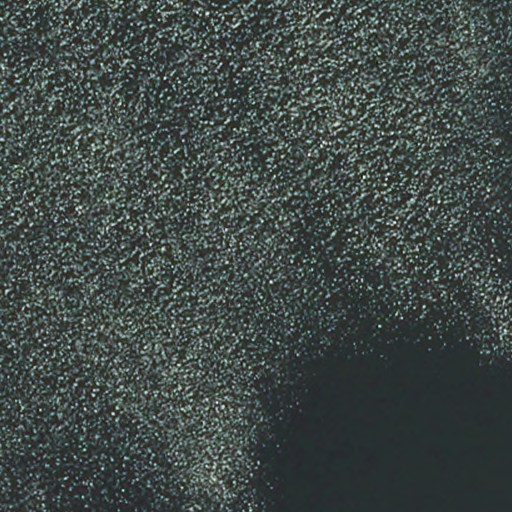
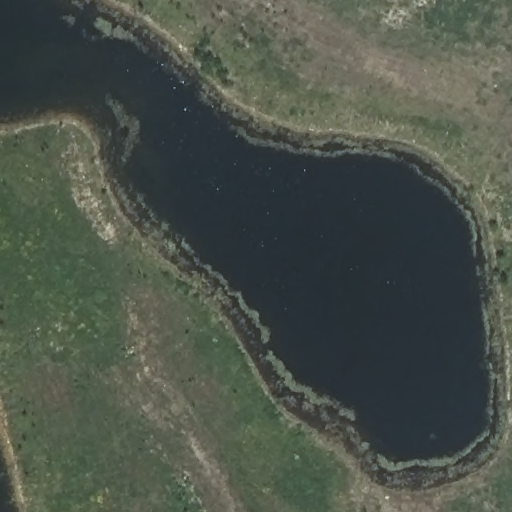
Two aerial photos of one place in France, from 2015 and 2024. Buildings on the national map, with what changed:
[]

